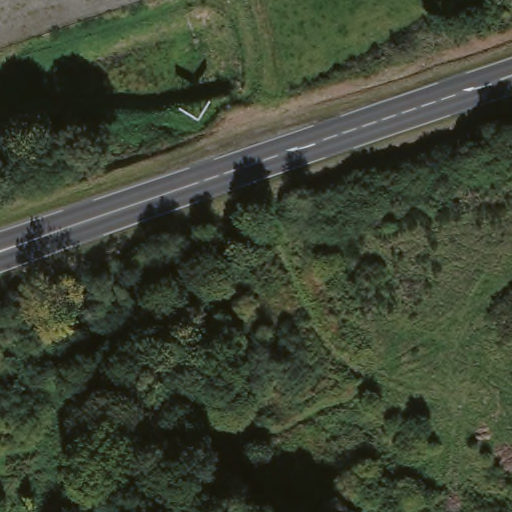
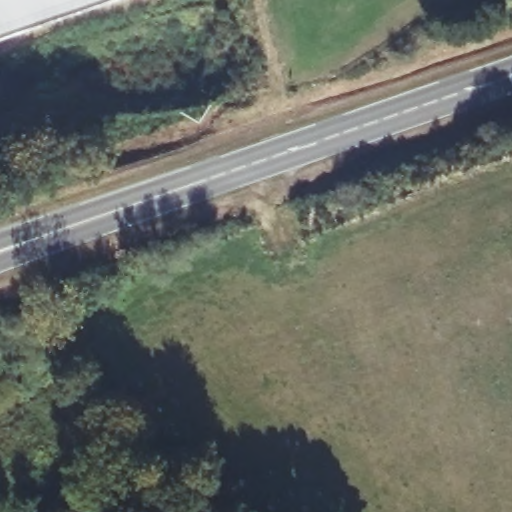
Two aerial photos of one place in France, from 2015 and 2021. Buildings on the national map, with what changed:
new [(0,38),(0,0),(110,0),(0,38)]

